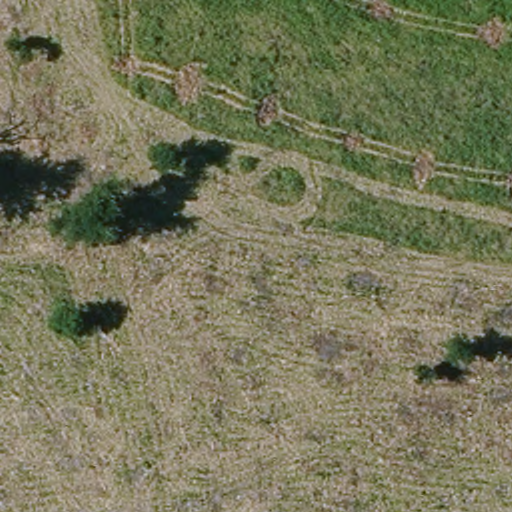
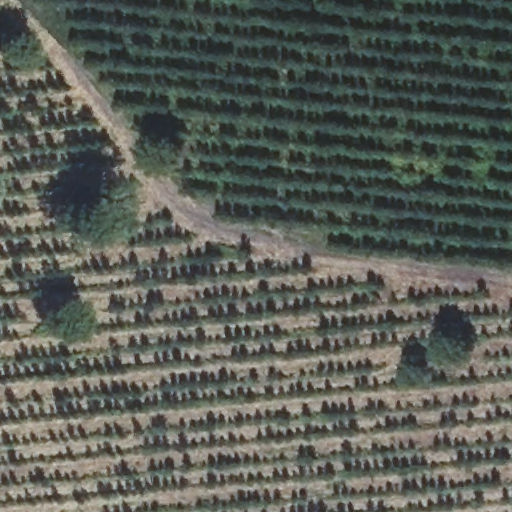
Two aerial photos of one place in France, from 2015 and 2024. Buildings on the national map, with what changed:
[]

